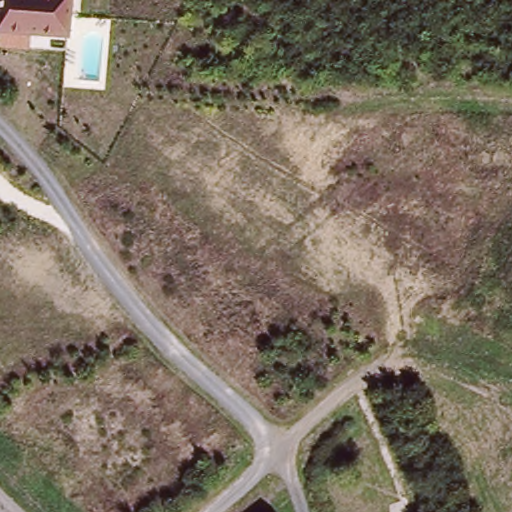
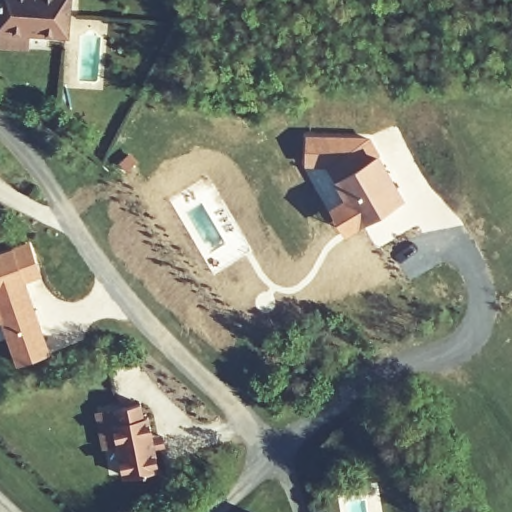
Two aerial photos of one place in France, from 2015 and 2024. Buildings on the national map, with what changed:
unchanged [(73,37),(33,35),(33,49),(0,47),(1,33),(0,33),(0,0),(75,0),(73,37)]
new [(305,134),(369,137),(378,153),(332,179),(325,168),(304,166),(305,134)]
new [(342,196),(332,179),(378,153),(406,198),(346,234),(328,206),(342,196)]
new [(28,241),(41,277),(26,283),(50,353),(15,367),(5,339),(0,340),(0,251),(28,241)]
new [(124,478),(118,445),(103,449),(95,412),(141,404),(144,417),(149,416),(153,437),(163,435),(165,448),(156,449),(160,470),(124,478)]

